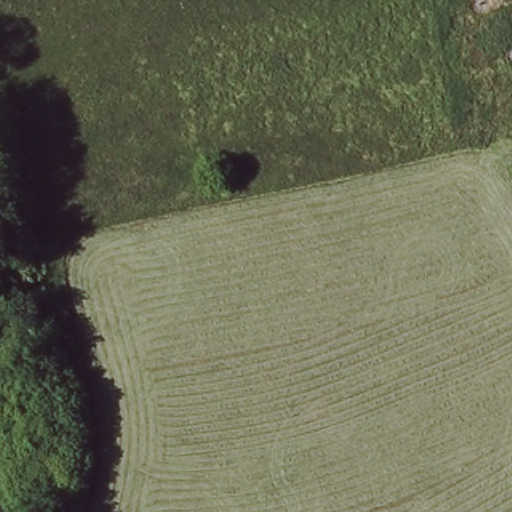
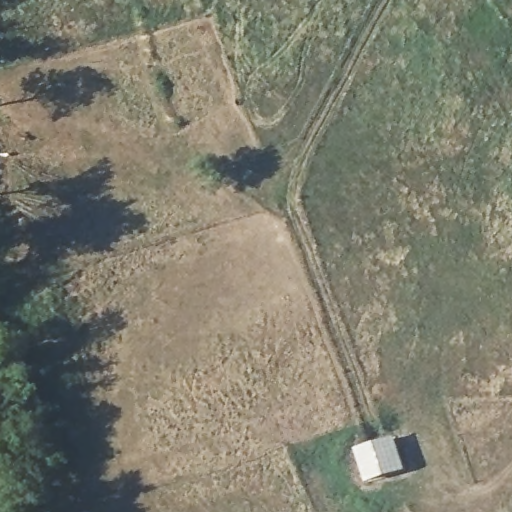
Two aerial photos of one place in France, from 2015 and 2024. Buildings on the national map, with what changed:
new [(357,449),(396,436),(407,471),(368,483),(357,449)]

